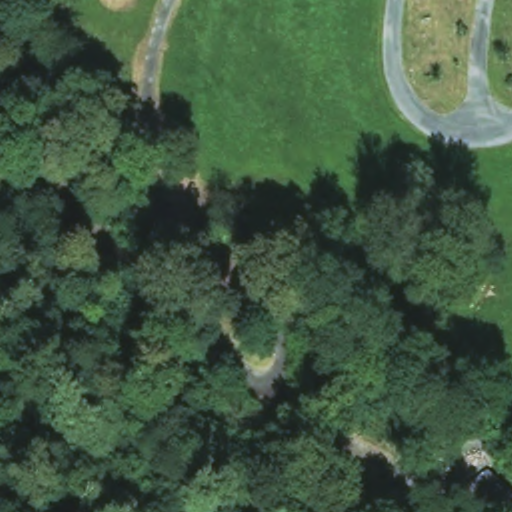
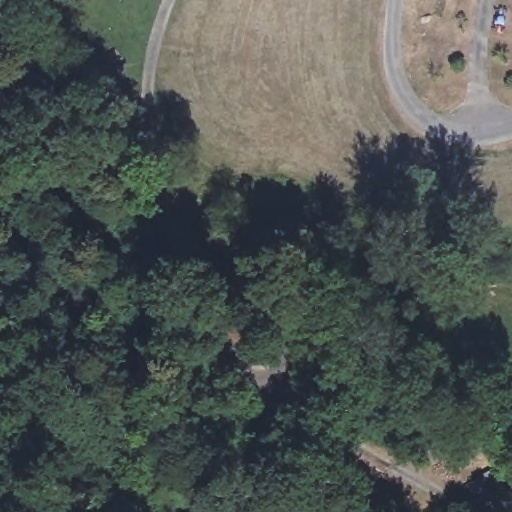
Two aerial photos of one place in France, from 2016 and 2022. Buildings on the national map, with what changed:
unchanged [(512,512),(488,512),(460,486),(487,461),(512,486),(512,512)]

